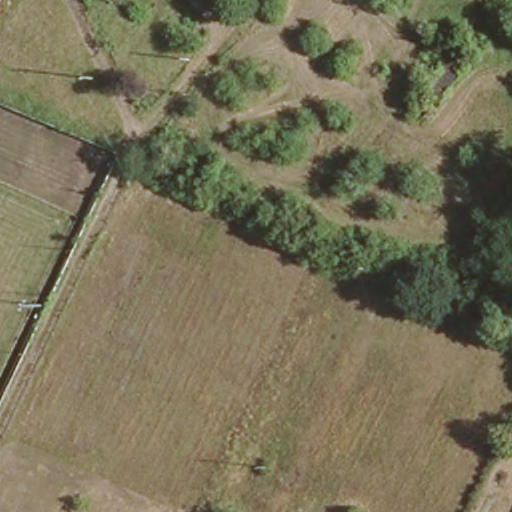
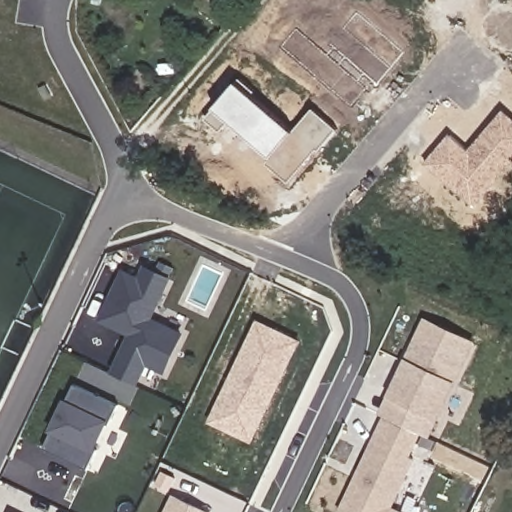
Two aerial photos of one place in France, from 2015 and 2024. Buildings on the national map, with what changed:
new [(358,12),(404,51),(377,84),(366,73),(359,82),(366,87),(350,107),(280,45),(297,27),(328,55),(334,47),(329,44),(358,12)]
demolished [(440,109),(420,95),(443,61),(463,75),(440,109)]
new [(268,163),(272,158),(230,120),(220,131),(205,119),(214,109),(238,82),(241,79),(257,90),(253,94),(295,131),(314,108),(338,129),(320,150),(318,149),(290,183),(268,163)]
new [(451,134),(469,149),(504,110),(512,116),(512,165),(476,208),(424,164),(451,134)]
new [(172,277),(153,316),(183,330),(163,373),(145,363),(134,385),(109,371),(126,332),(99,320),(120,268),(137,277),(141,263),(172,277)]
new [(474,340),(430,439),(419,435),(411,455),(414,458),(394,506),(407,512),(338,512),(381,418),(379,414),(424,316),(474,340)]
new [(257,321),(297,340),(252,440),(210,418),(257,321)]
new [(75,383),(121,407),(89,470),(43,447),(75,383)]
new [(209,512),(163,512),(170,495),(209,512)]
new [(11,512),(8,512),(9,511),(11,512)]

